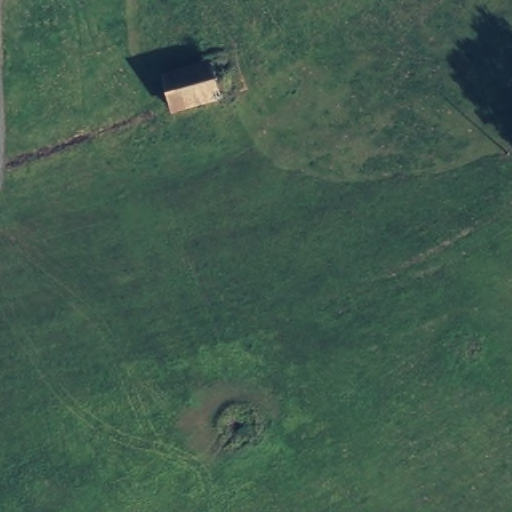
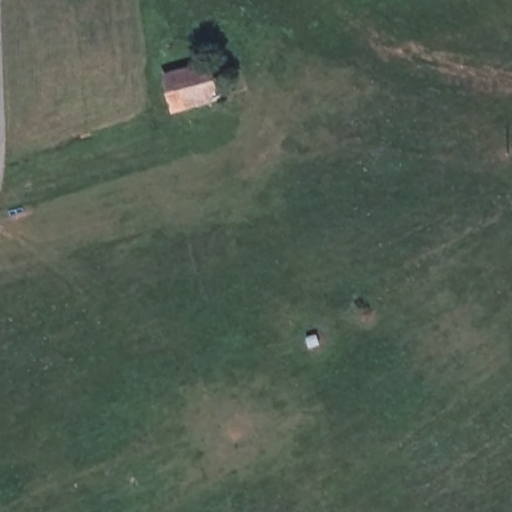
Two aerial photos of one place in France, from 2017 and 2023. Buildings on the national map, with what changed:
unchanged [(215,56),(228,101),(172,116),(160,73),(215,56)]

